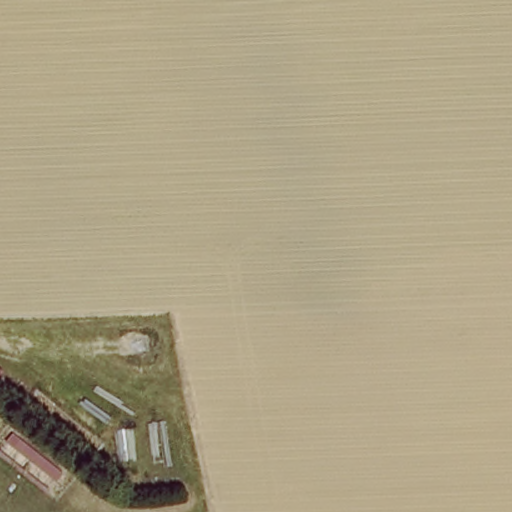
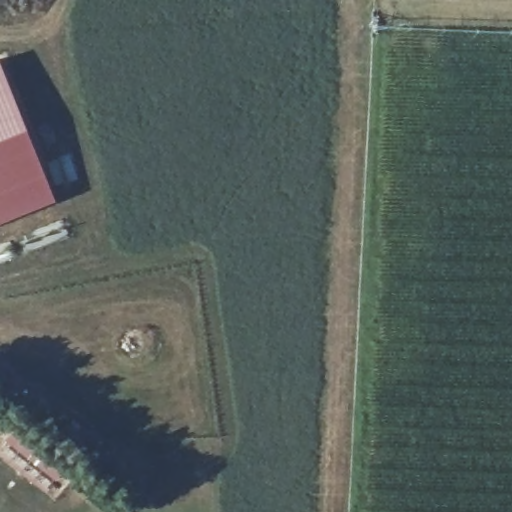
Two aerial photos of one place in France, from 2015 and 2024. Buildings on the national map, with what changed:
new [(26,122),(56,200),(0,223),(0,63),(26,122)]

